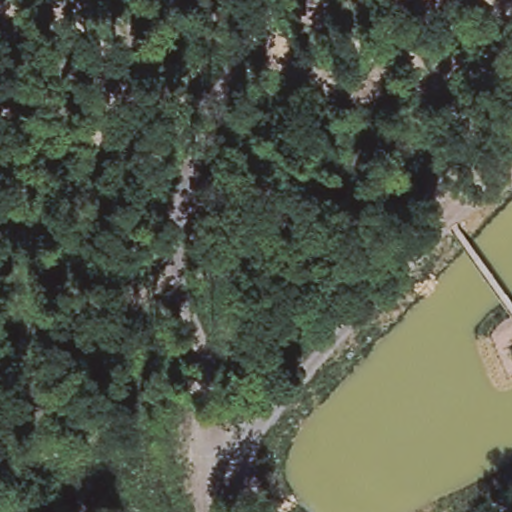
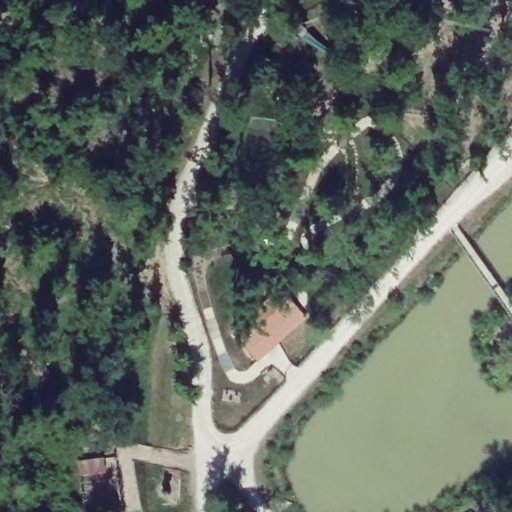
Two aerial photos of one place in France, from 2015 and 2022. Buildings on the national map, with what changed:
new [(268,351),(257,361),(231,332),(280,288),(297,308),(305,317),(268,351)]
new [(104,458),(106,472),(80,477),(77,462),(104,458)]

